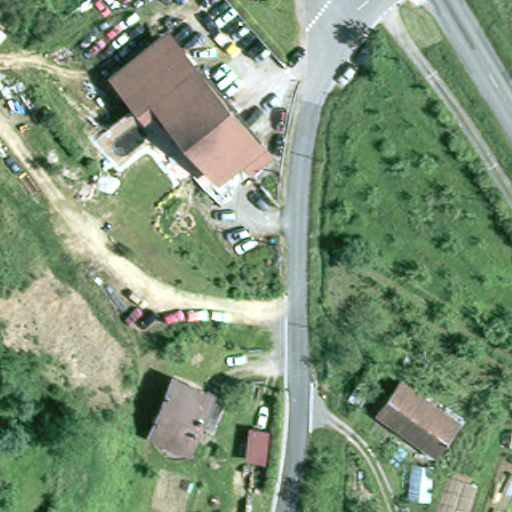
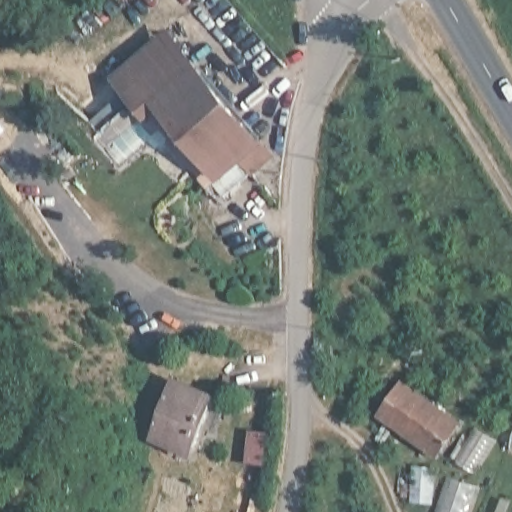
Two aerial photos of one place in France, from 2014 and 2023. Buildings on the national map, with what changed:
unchanged [(142,101),(132,90),(128,85),(182,43),(186,47),(196,57),(142,101)]
unchanged [(279,174),(271,176),(259,164),(233,189),(230,192),(142,101),(196,57),(279,174)]
unchanged [(218,380),(201,468),(148,457),(164,371),(218,380)]
unchanged [(388,417),(408,386),(460,427),(440,458),(388,417)]

